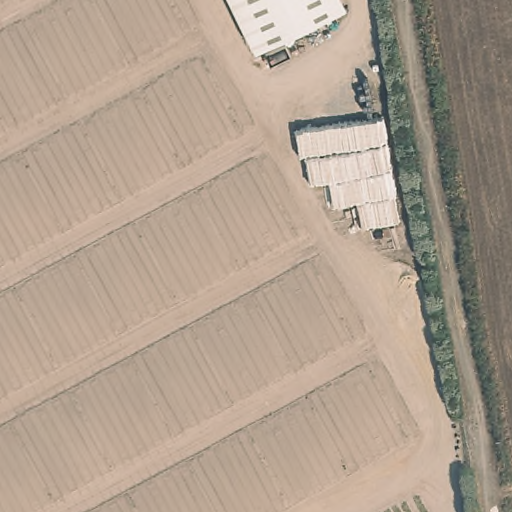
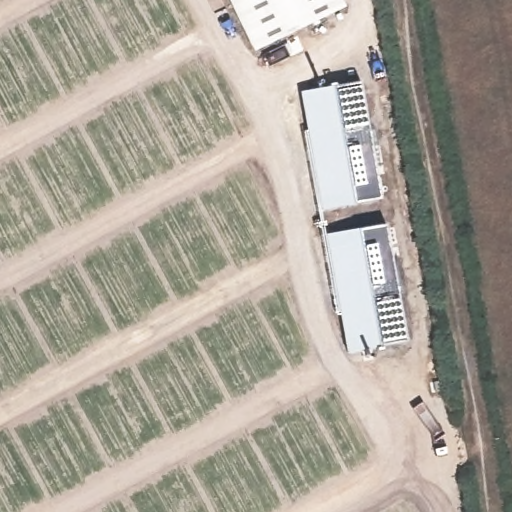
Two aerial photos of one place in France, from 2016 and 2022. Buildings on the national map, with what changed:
unchanged [(255,50),(231,0),(342,0),(345,6),(255,50)]
new [(300,91),(360,81),(381,199),(321,210),(300,91)]
new [(387,223),(408,341),(347,353),(324,234),(387,223)]

